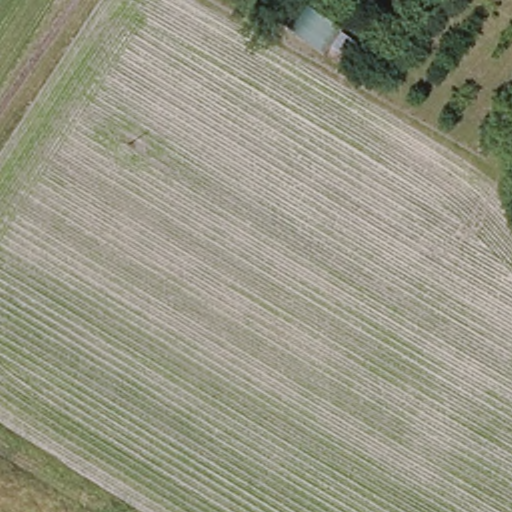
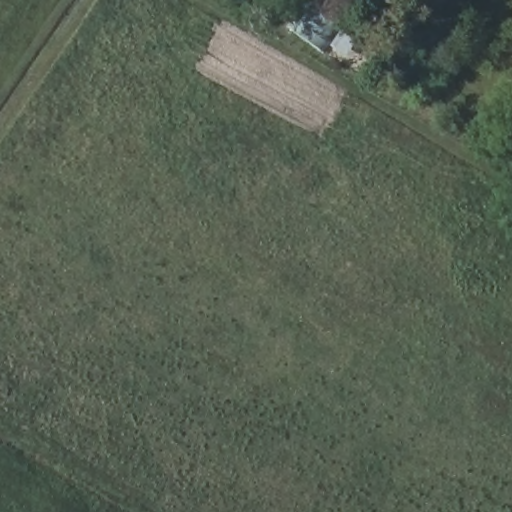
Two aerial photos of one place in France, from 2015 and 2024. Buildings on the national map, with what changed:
unchanged [(307,6),(337,27),(322,52),(294,30),(307,6)]

